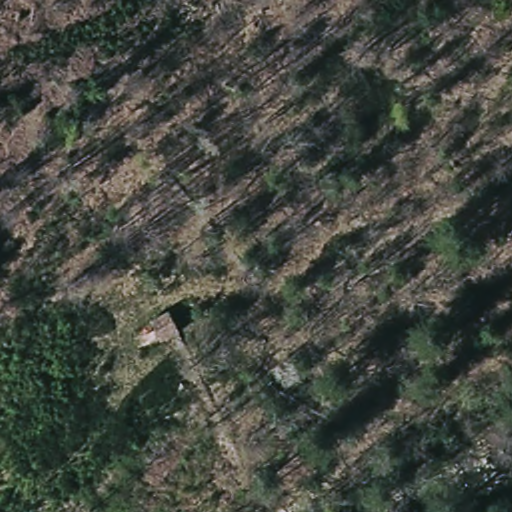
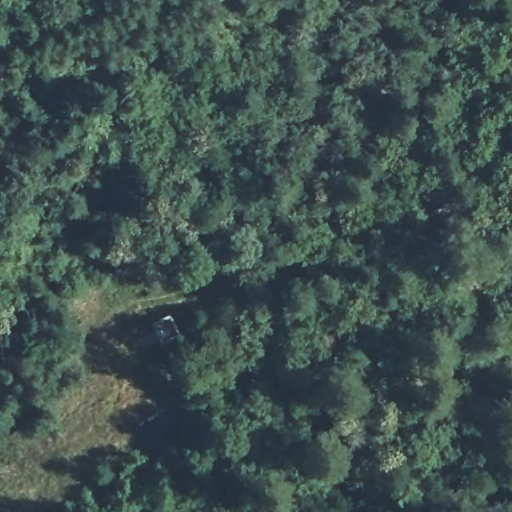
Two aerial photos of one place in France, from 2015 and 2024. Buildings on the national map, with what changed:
unchanged [(181,333),(161,345),(149,323),(170,311),(181,333)]

